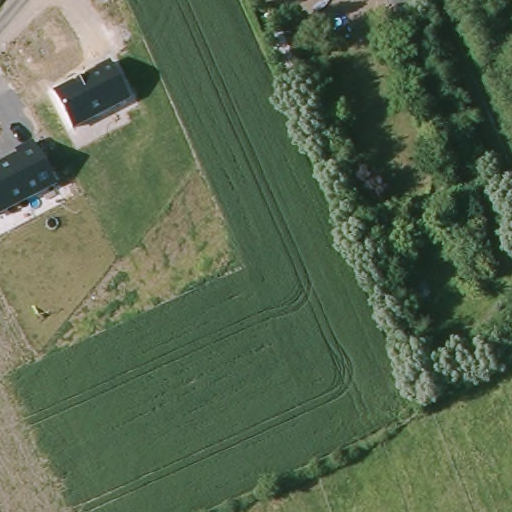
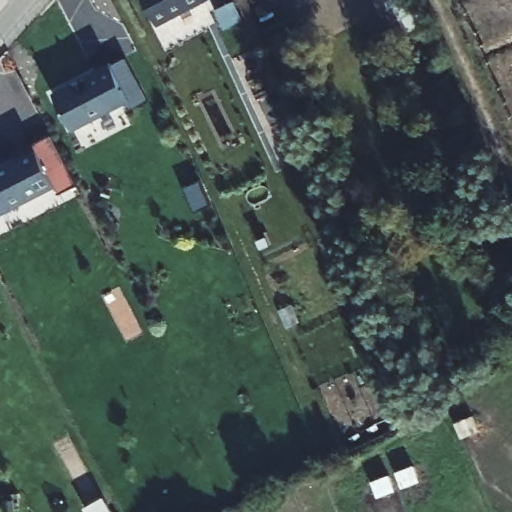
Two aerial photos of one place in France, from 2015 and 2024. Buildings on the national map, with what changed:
new [(144,0),(204,0),(157,24),(144,0)]
unchanged [(384,0),(390,0),(385,2),(384,0)]
unchanged [(305,76),(287,84),(268,38),(285,30),(305,76)]
unchanged [(110,65),(128,101),(72,130),(54,92),(110,65)]
unchanged [(18,157),(15,152),(33,144),(55,189),(0,217),(0,166),(18,157)]

